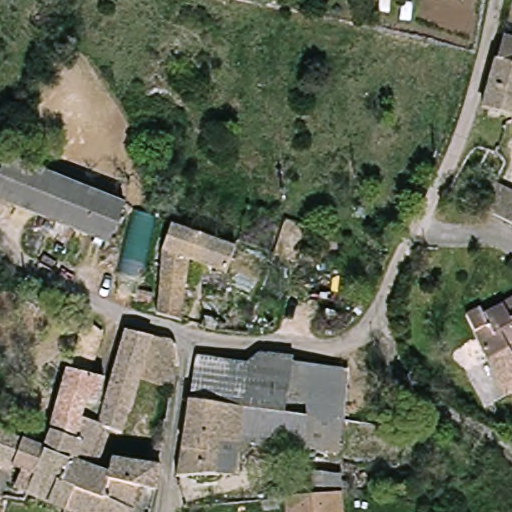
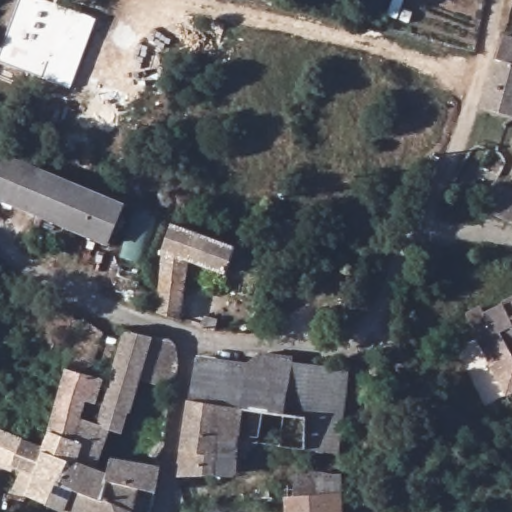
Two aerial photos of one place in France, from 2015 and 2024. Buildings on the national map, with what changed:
new [(71,88),(0,62),(0,54),(19,0),(45,0),(97,18),(71,88)]
unchanged [(480,116),(480,114),(502,34),(512,37),(512,124),(480,116)]
unchanged [(106,246),(0,200),(0,182),(10,156),(122,206),(106,246)]
unchanged [(492,216),(490,216),(508,185),(512,187),(512,227),(492,216)]
unchanged [(294,265),(271,256),(286,218),(310,229),(294,265)]
unchanged [(212,273),(184,262),(181,326),(150,317),(154,244),(164,222),(222,244),(212,273)]
unchanged [(462,320),(472,312),(478,318),(512,295),(512,337),(505,341),(510,348),(490,362),(473,336),(475,335),(462,320)]
unchanged [(229,332),(229,333),(227,332),(212,327),(215,317),(232,322),(229,332)]
unchanged [(100,426),(82,421),(73,447),(47,438),(60,394),(83,323),(105,337),(90,374),(106,382),(98,410),(104,412),(100,426)]
unchanged [(27,500),(34,478),(22,473),(0,464),(0,433),(42,454),(47,438),(73,447),(82,421),(100,426),(104,412),(125,337),(126,333),(160,341),(143,379),(119,434),(116,436),(97,434),(86,474),(101,479),(105,461),(154,469),(150,492),(132,488),(125,512),(59,512),(50,508),(27,500)]
unchanged [(510,348),(505,341),(512,337),(512,394),(511,394),(490,362),(510,348)]
unchanged [(167,344),(172,348),(175,351),(177,356),(171,391),(143,379),(160,341),(167,344)]
unchanged [(293,362),(284,403),(192,390),(197,356),(247,359),(260,349),(295,354),(293,362)]
unchanged [(350,368),(340,447),(303,443),(308,407),(284,403),(293,362),(350,368)]
unchanged [(303,443),(238,433),(236,443),(222,444),(217,470),(179,471),(192,390),(284,403),(308,407),(303,443)]
unchanged [(339,488),(340,512),(282,512),(280,495),(339,488)]

